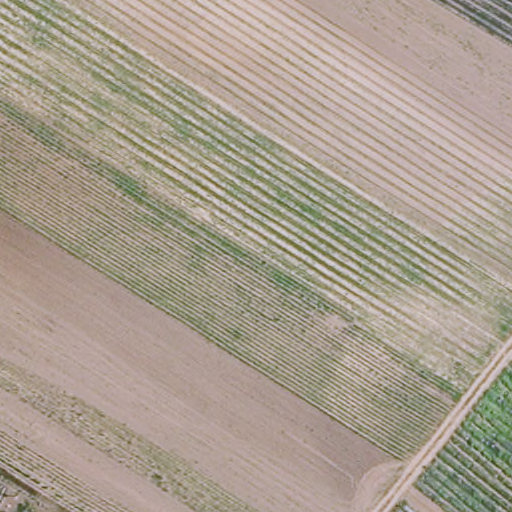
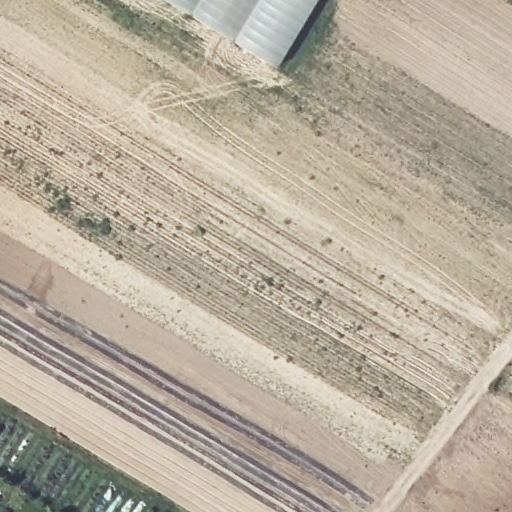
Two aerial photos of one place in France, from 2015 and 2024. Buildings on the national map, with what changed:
new [(279,68),(167,0),(319,0),(279,68)]

